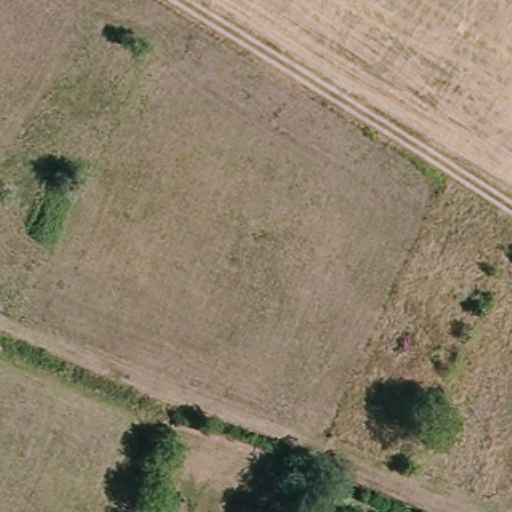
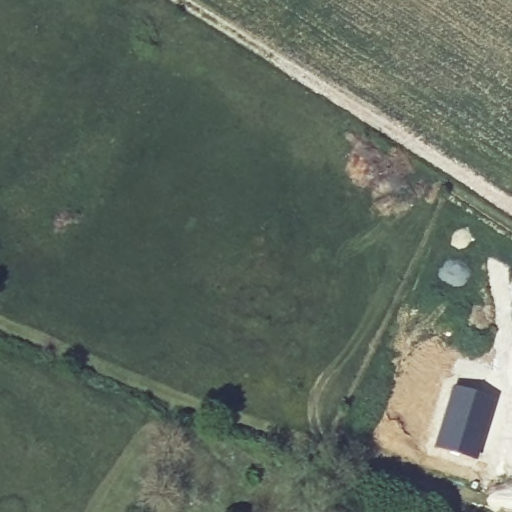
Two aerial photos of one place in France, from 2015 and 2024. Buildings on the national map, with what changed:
new [(452,384),(494,398),(474,459),(432,446),(452,384)]

